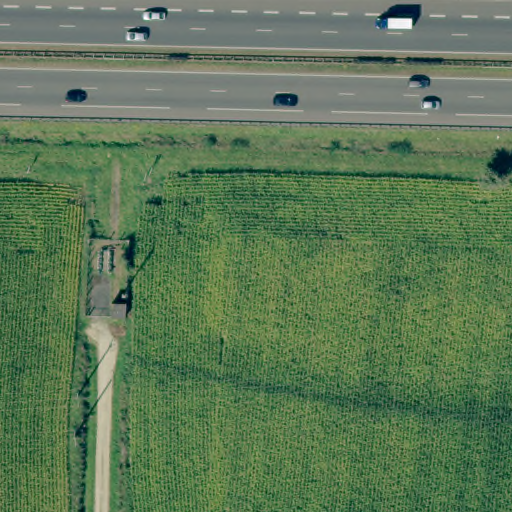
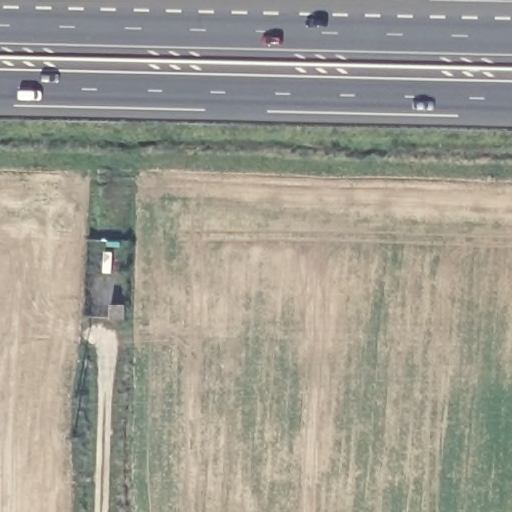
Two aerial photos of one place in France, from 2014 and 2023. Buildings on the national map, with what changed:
unchanged [(122,313),(107,313),(107,302),(122,302),(122,313)]

